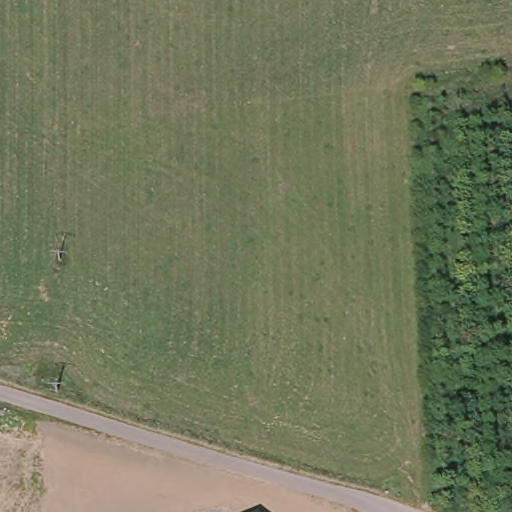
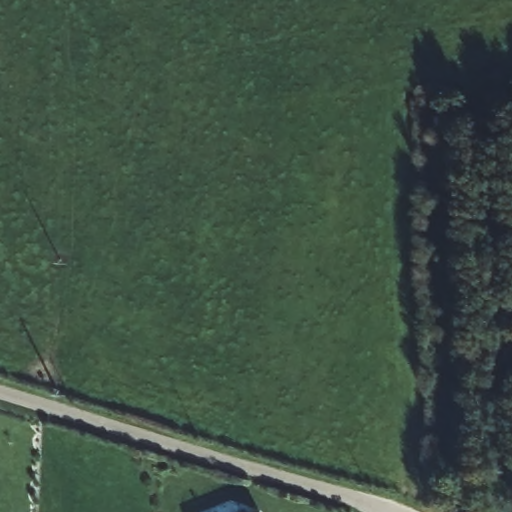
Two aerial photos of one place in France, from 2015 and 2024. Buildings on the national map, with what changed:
unchanged [(260,512),(258,512),(259,511),(260,512)]

